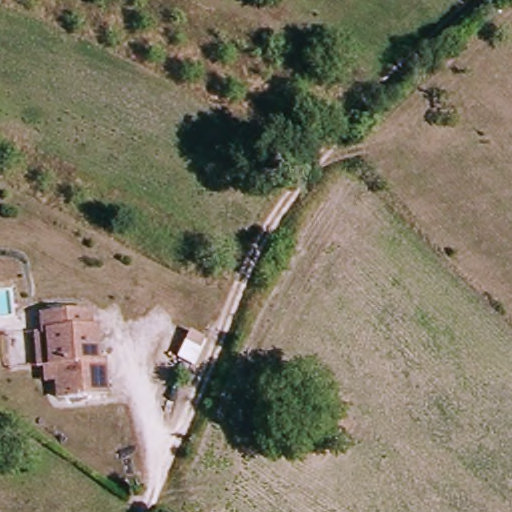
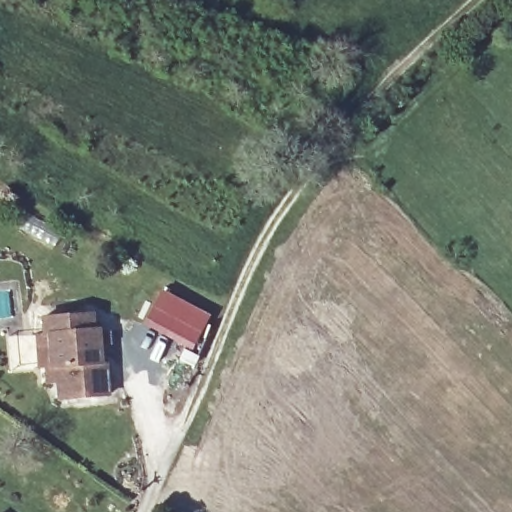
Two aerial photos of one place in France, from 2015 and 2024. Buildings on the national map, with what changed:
new [(161,290),(208,315),(191,348),(142,323),(161,290)]
unchanged [(39,337),(39,320),(87,315),(89,331),(94,331),(96,365),(101,365),(103,398),(54,402),(52,385),(43,385),(41,370),(36,370),(35,337),(39,337)]

